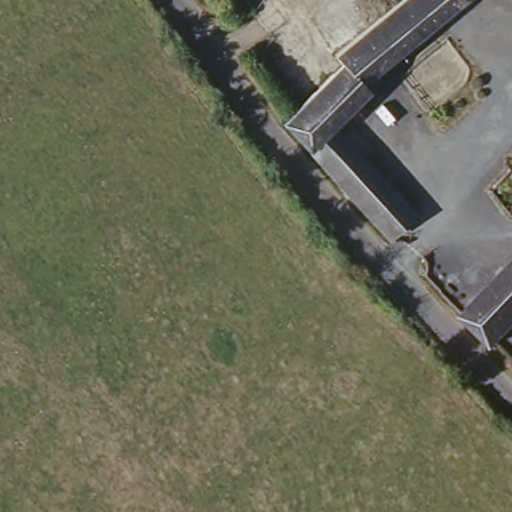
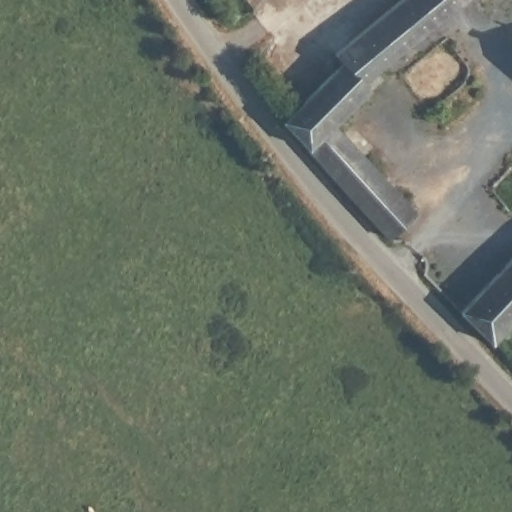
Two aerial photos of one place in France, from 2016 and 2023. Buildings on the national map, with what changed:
unchanged [(334,62),(407,0),(463,0),(370,80),(377,89),(328,134),(408,217),(388,238),(286,130),(342,72),(334,62)]
unchanged [(512,317),(483,341),(451,307),(512,254),(512,317)]

